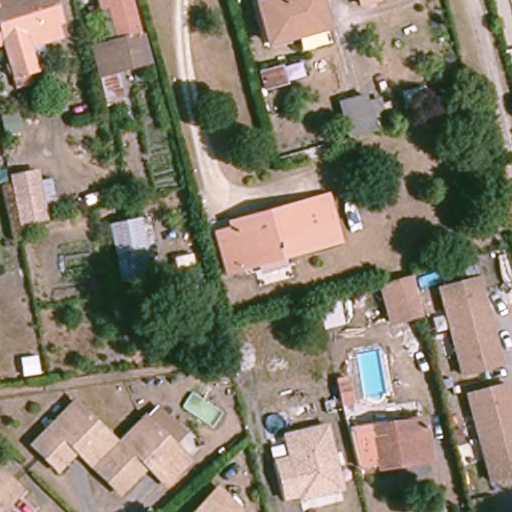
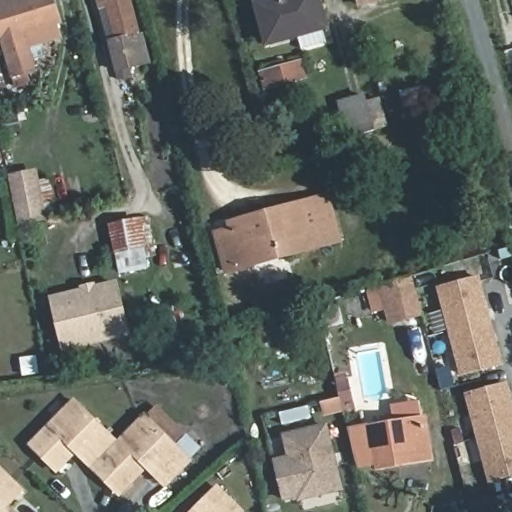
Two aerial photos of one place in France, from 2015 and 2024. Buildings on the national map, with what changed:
unchanged [(58,39),(28,46),(33,70),(27,72),(29,83),(14,87),(0,33),(0,0),(53,0),(59,23),(54,25),(58,39)]
unchanged [(98,78),(90,47),(107,43),(95,0),(129,0),(139,37),(145,36),(149,51),(152,64),(116,73),(123,100),(105,105),(98,78)]
unchanged [(322,29),(325,40),(301,47),(298,36),(267,45),(255,2),(265,0),(318,0),(325,28),(322,29)]
unchanged [(359,5),(358,0),(376,0),(376,1),(359,5)]
unchanged [(285,82),(263,89),(258,72),(280,66),(285,82)]
unchanged [(339,104),(364,96),(378,92),(387,125),(374,129),(374,131),(349,138),(339,104)]
unchanged [(26,127),(0,131),(0,111),(22,107),(26,127)]
unchanged [(41,219),(17,224),(9,179),(34,175),(41,219)]
unchanged [(339,240),(283,256),(286,268),(260,276),(256,264),(227,272),(216,233),(231,230),(229,223),(265,213),(327,195),(339,240)]
unchanged [(151,244),(142,245),(148,275),(120,280),(110,225),(145,218),(151,244)]
unchanged [(197,263),(176,268),(173,251),(194,247),(197,263)]
unchanged [(421,316),(390,323),(380,285),(410,275),(421,316)]
unchanged [(476,278),(486,313),(483,315),(485,322),(487,330),(490,329),(500,365),(481,370),(461,375),(437,289),(476,278)]
new [(71,295),(72,300),(101,292),(100,288),(118,283),(130,334),(66,350),(54,298),(71,295)]
unchanged [(349,392),(340,395),(336,378),(345,375),(349,392)]
unchanged [(512,476),(490,481),(466,395),(486,390),(506,384),(512,406),(512,476)]
unchanged [(151,474),(144,467),(138,473),(117,494),(90,466),(78,453),(75,450),(67,458),(54,471),(28,445),(72,400),(115,443),(144,415),(189,460),(168,482),(164,486),(151,474)]
unchanged [(397,465),(379,467),(373,428),(422,420),(427,453),(428,460),(397,465)]
unchanged [(337,487),(296,496),(295,493),(278,497),(274,477),(270,460),(287,456),(282,435),(322,425),(337,487)]
unchanged [(1,465),(20,484),(26,490),(12,503),(7,509),(10,512),(0,512),(0,466),(1,465)]
unchanged [(206,498),(217,486),(226,496),(240,510),(239,512),(193,512),(206,498)]

